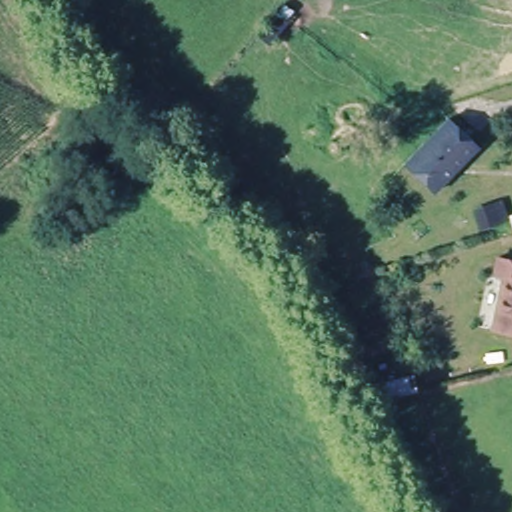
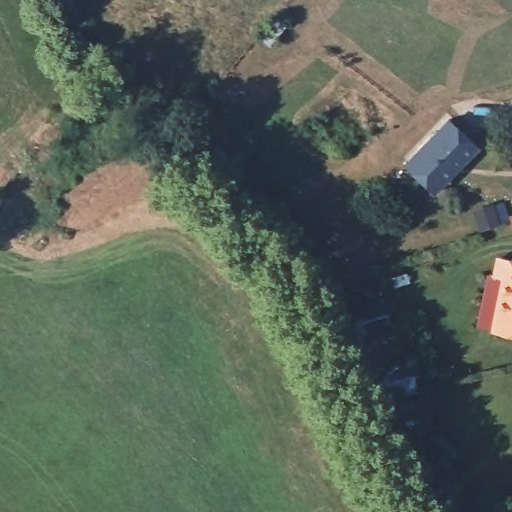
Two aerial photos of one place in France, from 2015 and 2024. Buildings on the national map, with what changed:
unchanged [(405,162),(415,155),(450,122),(475,150),(442,181),(433,190),(405,162)]
unchanged [(492,200),(496,215),(482,219),(478,204),(492,200)]
unchanged [(498,285),(488,282),(491,266),(512,269),(512,338),(491,334),(498,285)]

